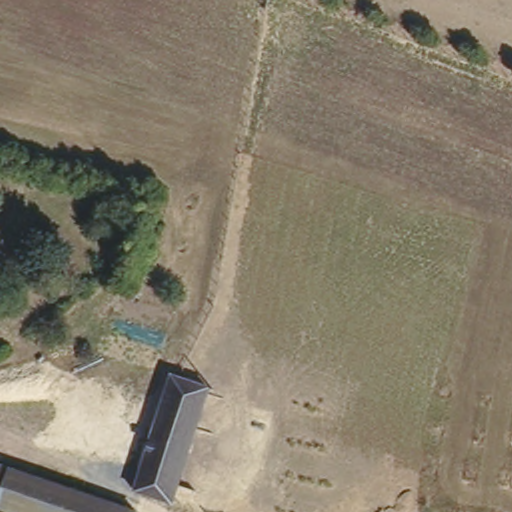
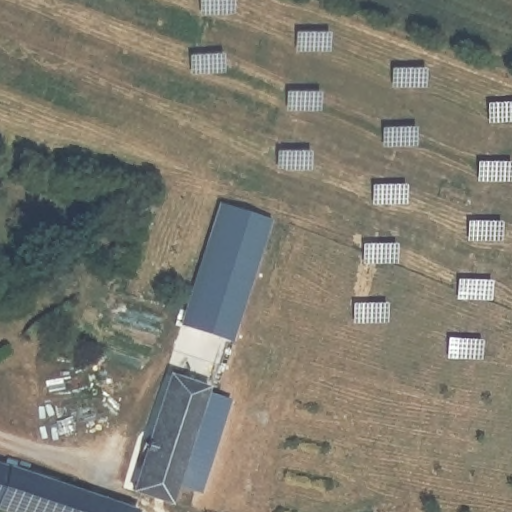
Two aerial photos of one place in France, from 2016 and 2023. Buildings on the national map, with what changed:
new [(271,221),(231,345),(180,329),(219,202),(271,221)]
unchanged [(215,375),(178,498),(131,479),(164,360),(215,375)]
unchanged [(134,512),(19,512),(0,505),(0,454),(137,504),(134,512)]

